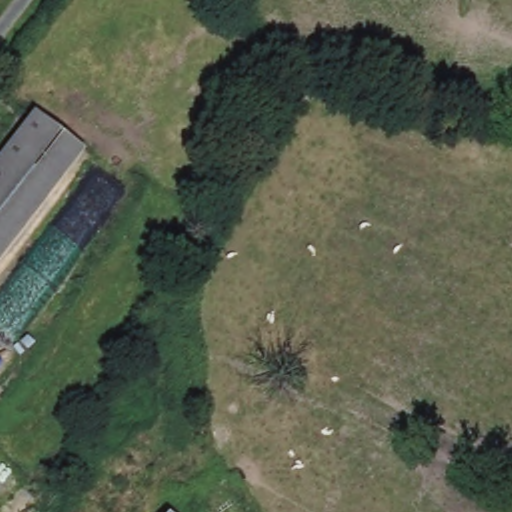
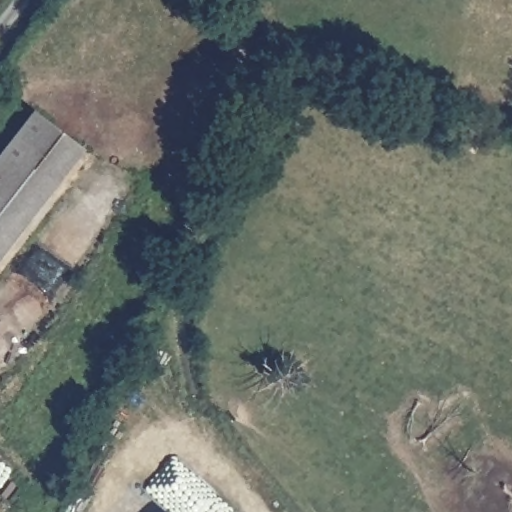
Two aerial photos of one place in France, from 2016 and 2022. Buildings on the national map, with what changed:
unchanged [(83,148),(0,257),(0,165),(37,116),(83,148)]

